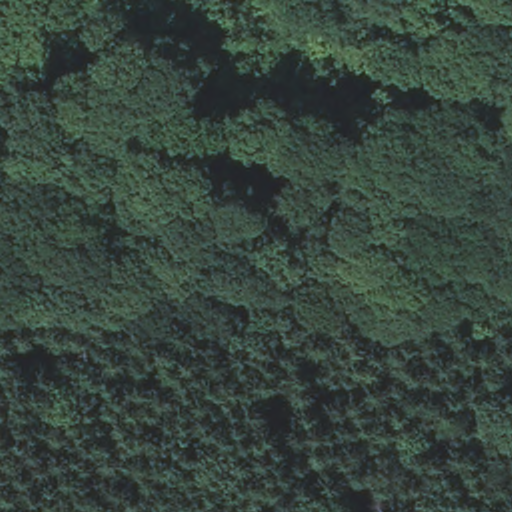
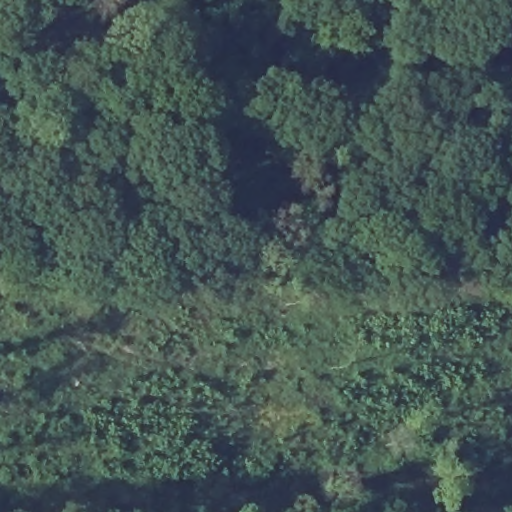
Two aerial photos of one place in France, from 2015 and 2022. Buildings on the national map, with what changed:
[]

